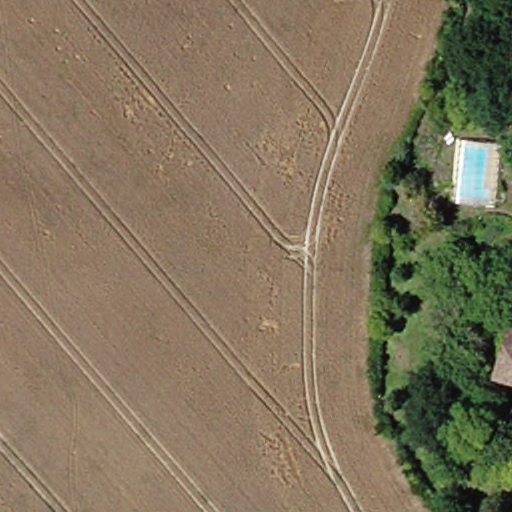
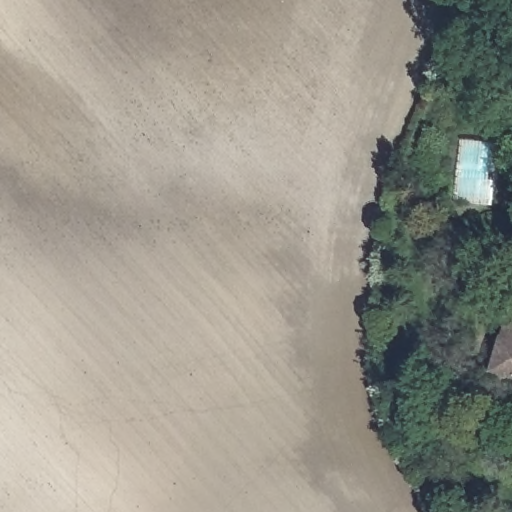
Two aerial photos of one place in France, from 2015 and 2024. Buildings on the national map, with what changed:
unchanged [(502,371),(511,336),(512,333),(512,374),(502,371)]

